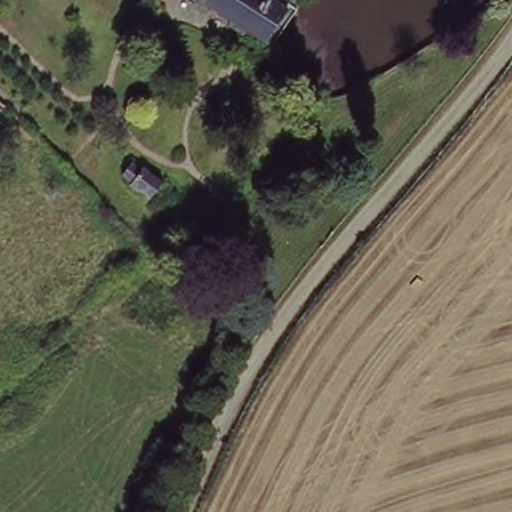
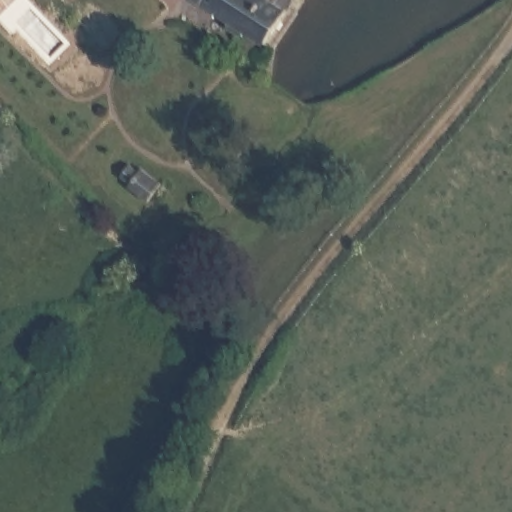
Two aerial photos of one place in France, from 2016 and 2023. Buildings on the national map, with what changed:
unchanged [(286,7),(266,40),(251,31),(246,41),(220,25),(225,17),(198,0),(274,0),(286,7)]
unchanged [(292,0),(294,0),(293,1),(292,0)]
unchanged [(126,186),(115,174),(124,166),(131,171),(136,165),(161,187),(144,205),(125,189),(126,186)]

